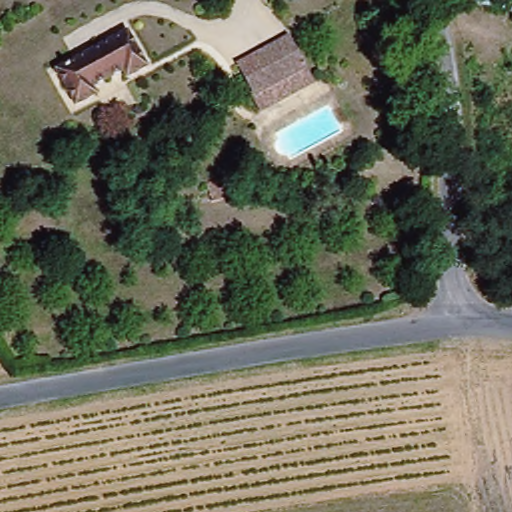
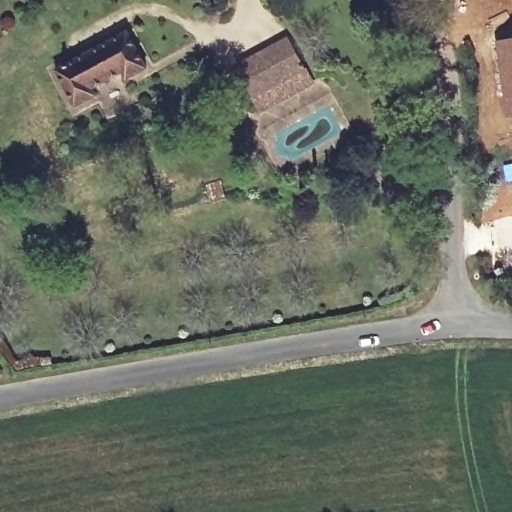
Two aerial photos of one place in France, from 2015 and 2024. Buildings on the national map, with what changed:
unchanged [(62,66),(132,27),(152,65),(135,75),(131,69),(100,85),(103,91),(82,104),(62,66)]
unchanged [(254,94),(237,65),(290,36),(314,79),(297,88),(261,107),(254,94)]
new [(500,60),(497,60),(495,42),(512,39),(512,118),(508,119),(500,60)]
new [(510,91),(512,98),(505,99),(504,91),(510,91)]

